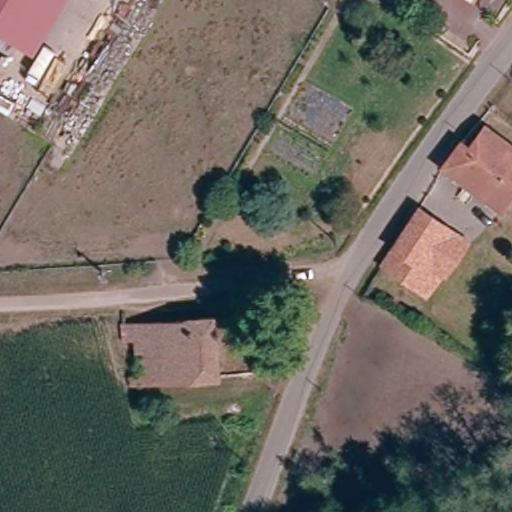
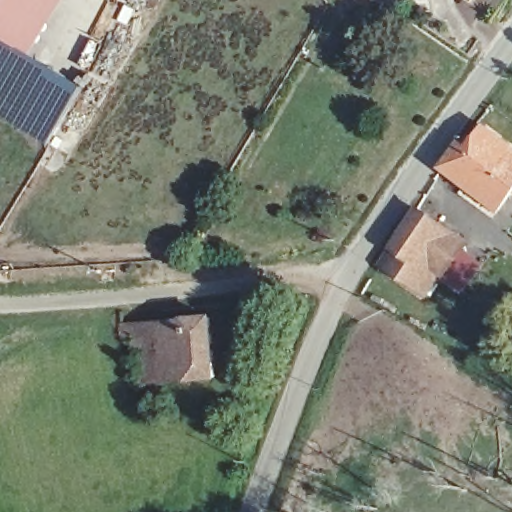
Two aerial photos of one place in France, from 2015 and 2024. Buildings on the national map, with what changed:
new [(50,146),(0,115),(0,0),(66,0),(33,55),(85,86),(50,146)]
unchanged [(409,4),(403,0),(415,0),(411,6),(409,4)]
unchanged [(469,149),(484,129),(512,150),(512,182),(469,149)]
unchanged [(469,149),(512,182),(512,192),(500,209),(443,169),(460,143),(469,149)]
unchanged [(418,213),(441,229),(435,241),(446,248),(453,239),(466,247),(419,314),(372,280),(418,213)]
unchanged [(138,392),(134,349),(125,349),(126,327),(211,320),(218,383),(138,392)]

